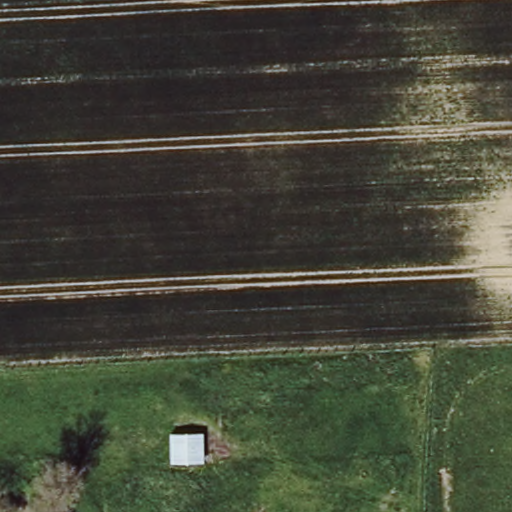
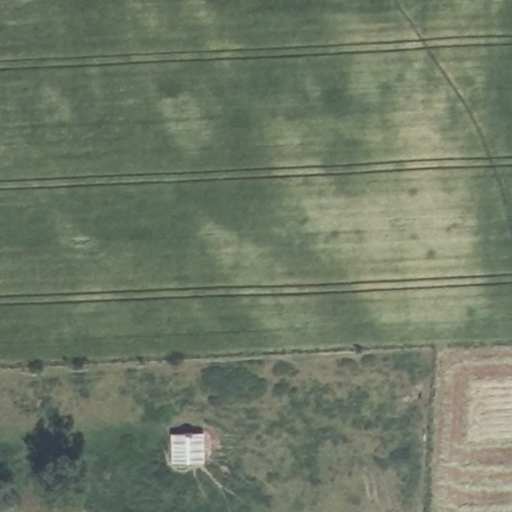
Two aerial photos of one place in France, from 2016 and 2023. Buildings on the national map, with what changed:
unchanged [(203,433),(203,463),(170,464),(169,433),(203,433)]

